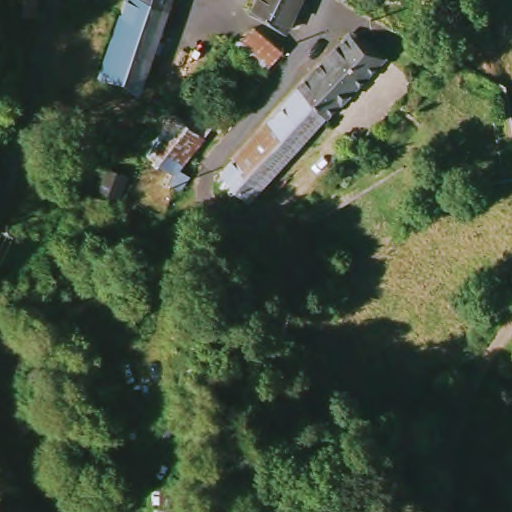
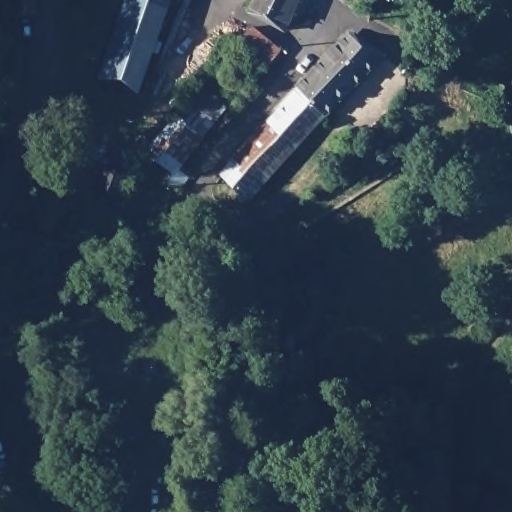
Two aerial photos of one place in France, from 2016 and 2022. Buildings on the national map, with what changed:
unchanged [(34,0),(36,17),(17,16),(16,0),(34,0)]
unchanged [(102,79),(132,0),(176,0),(144,93),(102,79)]
unchanged [(260,15),(267,0),(309,0),(295,31),(260,15)]
unchanged [(230,59),(247,39),(265,28),(293,49),(280,64),(259,87),(230,59)]
unchanged [(247,200),(222,176),(298,90),(303,82),(343,37),(354,33),(383,54),(247,200)]
unchanged [(209,143),(185,176),(195,184),(187,197),(176,189),(178,177),(150,159),(180,121),(209,143)]

